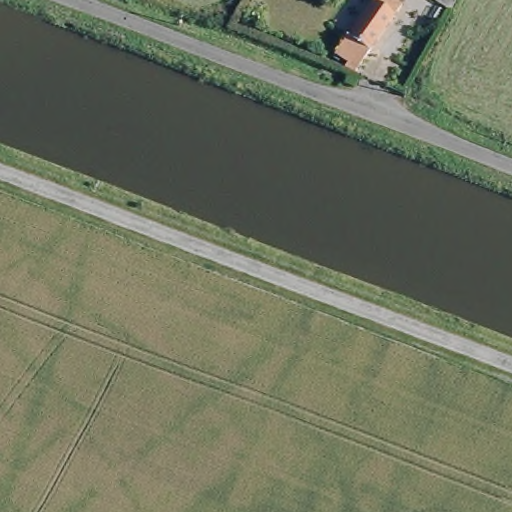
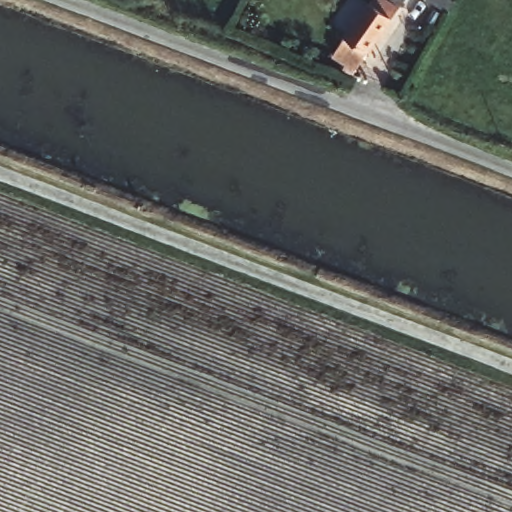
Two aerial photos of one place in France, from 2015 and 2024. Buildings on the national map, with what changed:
unchanged [(345,35),(371,1),(372,0),(406,0),(395,15),(370,49),(354,71),(329,57),(345,35)]
unchanged [(427,0),(454,0),(449,10),(427,0)]

